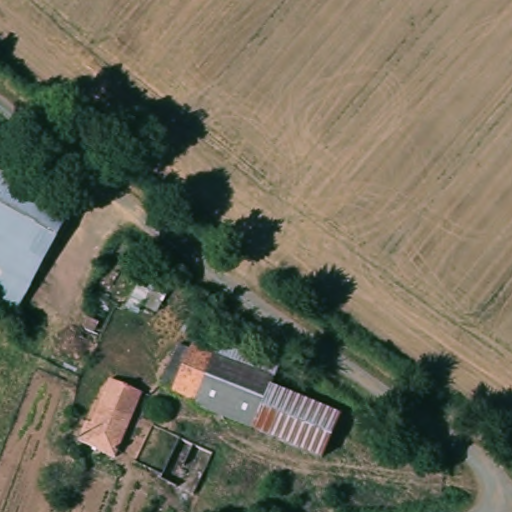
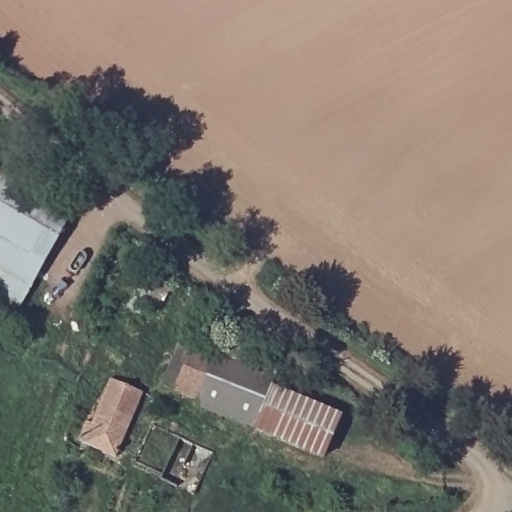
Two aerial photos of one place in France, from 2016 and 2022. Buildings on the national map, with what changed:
unchanged [(73,207),(16,308),(0,299),(0,165),(73,207)]
unchanged [(199,401),(201,396),(182,387),(183,385),(172,378),(187,342),(280,380),(277,385),(259,427),(199,401)]
unchanged [(142,390),(115,454),(83,438),(110,375),(142,390)]
unchanged [(342,413),(324,454),(259,427),(277,385),(342,413)]

